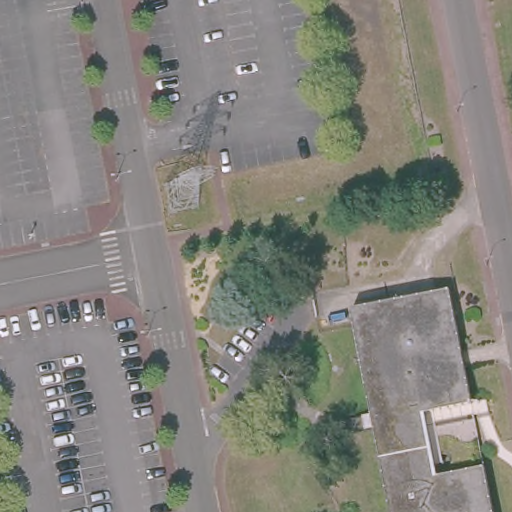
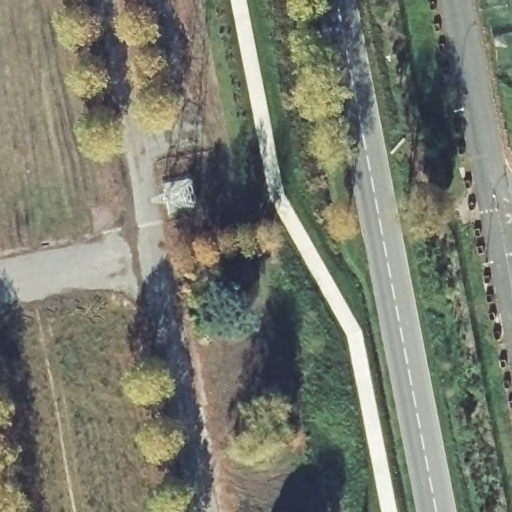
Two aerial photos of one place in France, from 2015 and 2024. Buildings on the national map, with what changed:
demolished [(447,284),(471,400),(418,413),(433,475),(485,463),(495,512),(388,512),(346,304),(447,284)]
demolished [(471,400),(485,463),(433,475),(418,413),(471,400)]

